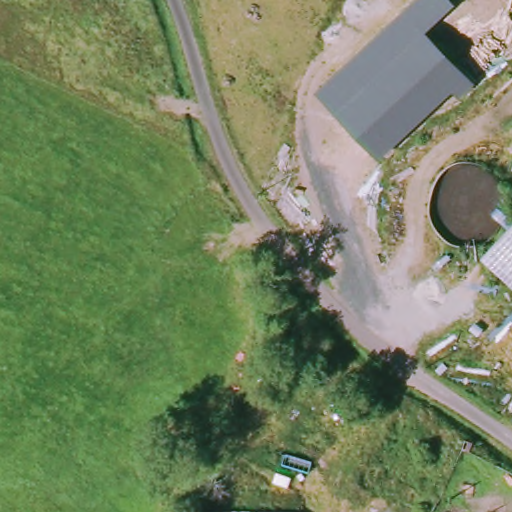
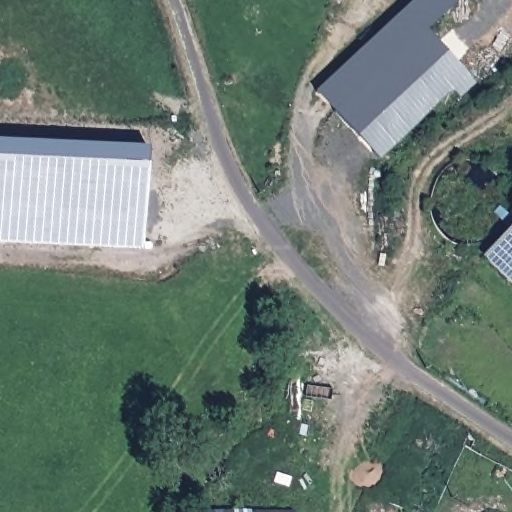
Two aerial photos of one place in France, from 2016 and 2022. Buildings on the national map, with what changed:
unchanged [(426,29),(474,82),(458,96),(453,89),(378,158),(316,89),(411,0),(451,0),(454,2),(426,29)]
new [(142,248),(0,249),(0,141),(146,146),(142,248)]
unchanged [(487,262),(512,235),(512,287),(487,262)]

